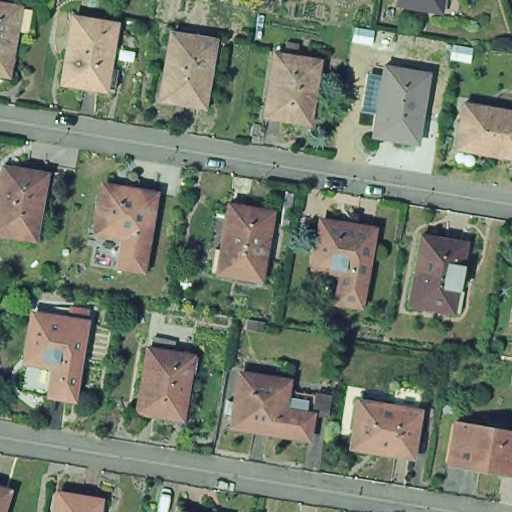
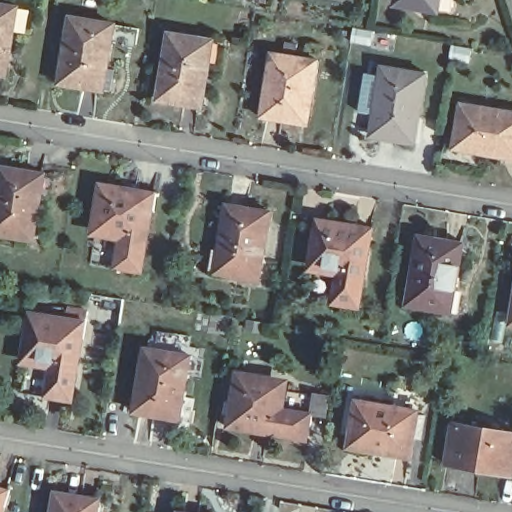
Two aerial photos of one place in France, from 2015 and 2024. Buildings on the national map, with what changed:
unchanged [(429,12),(389,5),(390,0),(432,0),(429,12)]
unchanged [(14,58),(8,57),(3,84),(0,83),(0,79),(0,9),(21,13),(14,58)]
unchanged [(110,67),(106,66),(101,91),(64,84),(75,18),(118,26),(110,67)]
unchanged [(203,66),(208,67),(201,112),(158,104),(169,39),(206,45),(203,66)]
unchanged [(309,134),(271,127),(283,64),(326,72),(319,108),(314,135),(309,134)]
unchanged [(366,135),(383,71),(432,84),(414,147),(366,135)]
unchanged [(480,152),(458,148),(465,111),(512,120),(512,162),(479,157),(480,152)]
unchanged [(30,223),(25,222),(22,243),(0,239),(0,172),(38,179),(30,223)]
unchanged [(162,214),(158,214),(148,276),(124,272),(131,237),(106,233),(113,192),(145,198),(146,194),(165,197),(162,214)]
unchanged [(221,253),(228,254),(234,209),(279,216),(278,219),(274,218),(268,259),(271,260),(267,284),(233,278),(233,280),(230,280),(230,278),(218,276),(221,253)]
unchanged [(369,251),(364,251),(355,312),(331,307),(337,273),(313,269),(320,229),(351,234),(352,229),(373,233),(369,251)]
unchanged [(459,299),(451,298),(447,320),(412,314),(416,290),(419,291),(426,250),(423,249),(424,245),(467,253),(459,299)]
unchanged [(86,345),(83,344),(73,406),(49,402),(55,368),(31,364),(38,324),(69,330),(70,325),(71,325),(73,315),(90,318),(88,328),(89,328),(86,345)]
unchanged [(133,417),(144,353),(188,360),(183,397),(178,425),(171,423),(133,417)]
unchanged [(276,385),(271,410),(307,416),(303,439),(242,428),(241,433),(223,429),(227,409),(231,410),(236,379),(276,385)]
unchanged [(387,408),(391,388),(416,393),(412,412),(404,459),(366,452),(343,448),(344,441),(351,401),(387,408)]
unchanged [(464,466),(449,464),(457,423),(471,425),(512,433),(512,474),(507,474),(464,466)]
unchanged [(9,492),(4,507),(2,507),(0,512),(0,489),(9,492)]
unchanged [(58,512),(61,493),(103,501),(102,512),(58,512)]

